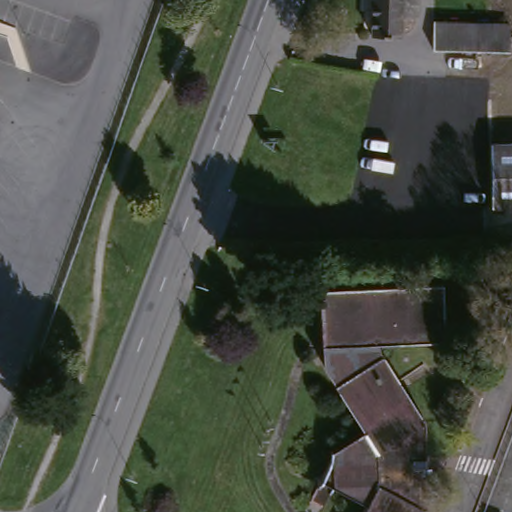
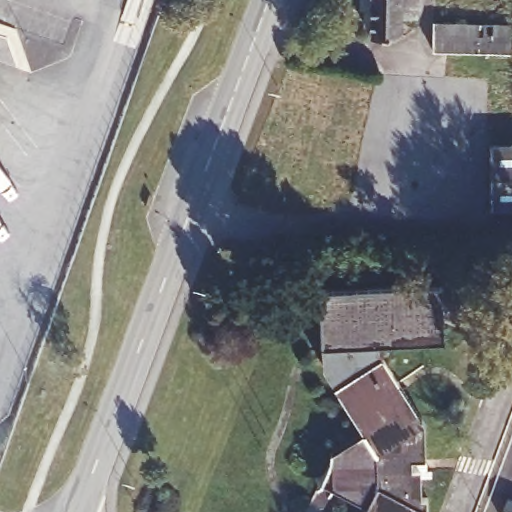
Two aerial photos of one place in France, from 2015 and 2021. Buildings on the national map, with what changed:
unchanged [(367,0),(413,0),(413,24),(396,24),(396,42),(366,42),(367,0)]
unchanged [(435,26),(510,25),(510,50),(435,50),(435,26)]
unchanged [(512,143),(512,207),(491,206),(491,142),(512,143)]
unchanged [(445,348),(381,350),(422,431),(417,512),(355,512),(310,489),(327,454),(356,437),(318,360),(323,291),(446,291),(445,348)]

